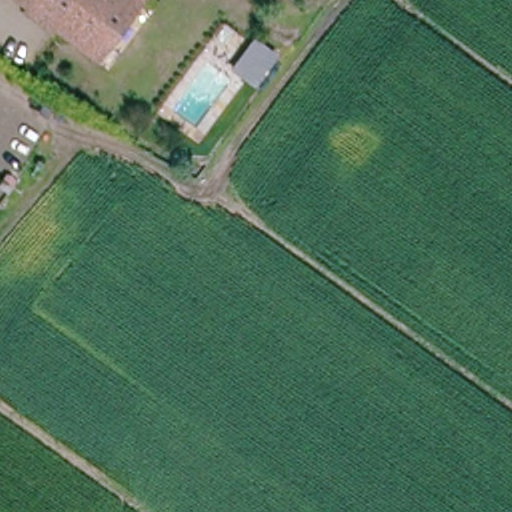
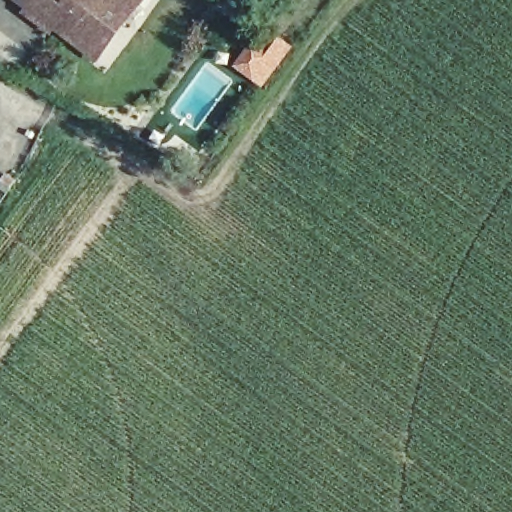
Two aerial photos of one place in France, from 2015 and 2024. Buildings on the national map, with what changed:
unchanged [(24,21),(27,17),(4,0),(137,0),(140,2),(132,12),(93,65),(52,35),(49,39),(24,21)]
unchanged [(239,61),(253,40),(264,48),(250,68),(239,61)]

